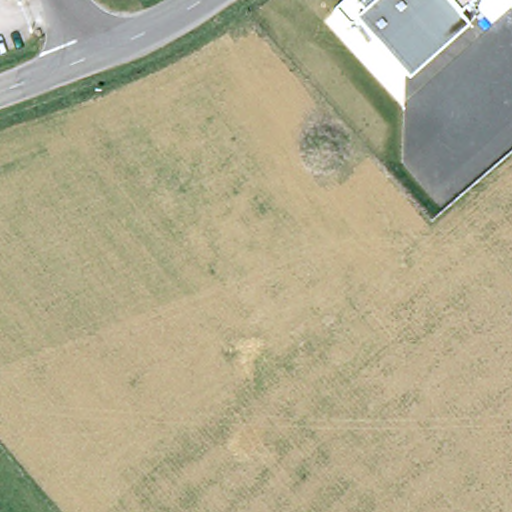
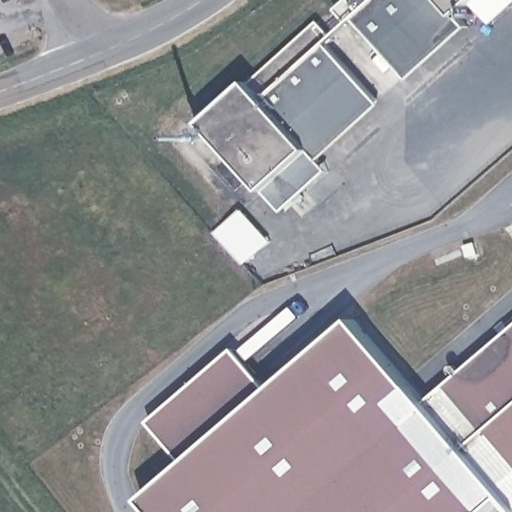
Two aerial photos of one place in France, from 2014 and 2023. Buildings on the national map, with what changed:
unchanged [(512,0),(512,6),(491,24),(474,4),(460,15),(469,27),(409,80),(357,20),(350,25),(335,8),(345,0),(512,0)]
new [(282,210),(262,190),(309,148),(250,82),(318,20),(334,37),(328,45),(380,105),(319,159),(327,170),(282,210)]
new [(202,124),(250,82),(309,148),(262,190),(202,124)]
new [(268,243),(242,263),(215,232),(240,210),(268,243)]
new [(485,512),(154,512),(144,500),(187,463),(270,391),(355,319),(427,403),(506,494),(485,512)]
unchanged [(512,330),(512,501),(506,494),(427,403),(512,330)]
new [(187,463),(151,421),(235,349),(270,391),(187,463)]

